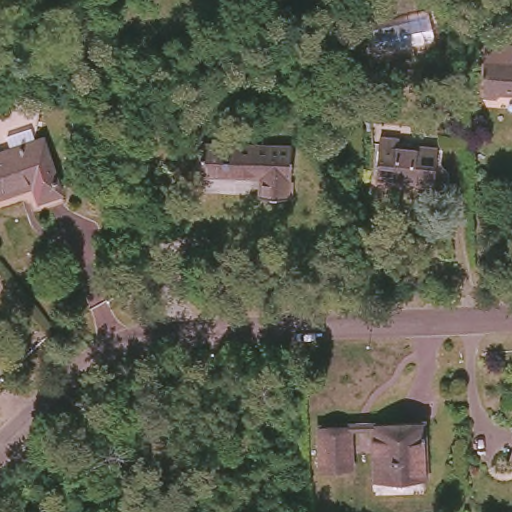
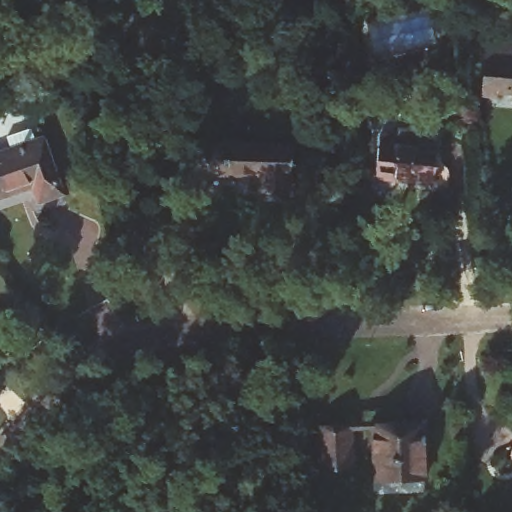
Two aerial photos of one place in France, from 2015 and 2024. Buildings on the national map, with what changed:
unchanged [(370,21),(433,9),(440,46),(377,58),(370,21)]
unchanged [(483,39),(510,40),(508,55),(512,56),(512,85),(482,84),(483,39)]
unchanged [(0,193),(0,150),(40,134),(60,188),(40,197),(33,179),(0,193)]
unchanged [(207,173),(207,139),(243,139),(245,172),(207,173)]
unchanged [(298,140),(297,175),(292,175),(292,193),(265,191),(264,172),(245,172),(243,139),(298,140)]
unchanged [(380,170),(383,140),(436,147),(433,176),(380,170)]
unchanged [(322,420),(350,418),(352,460),(324,461),(322,420)]
unchanged [(375,421),(421,419),(423,475),(376,477),(375,421)]
unchanged [(508,456),(512,443),(512,457),(508,456)]

